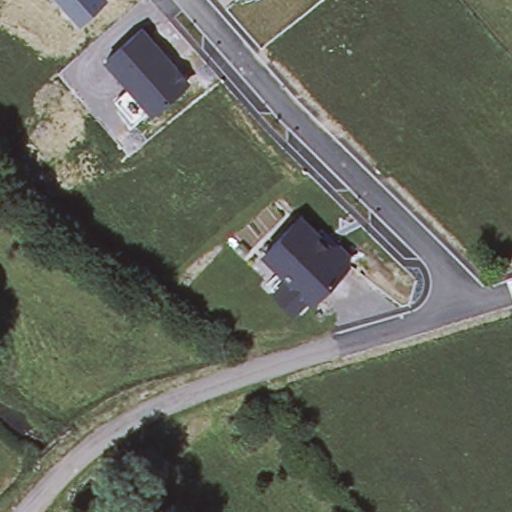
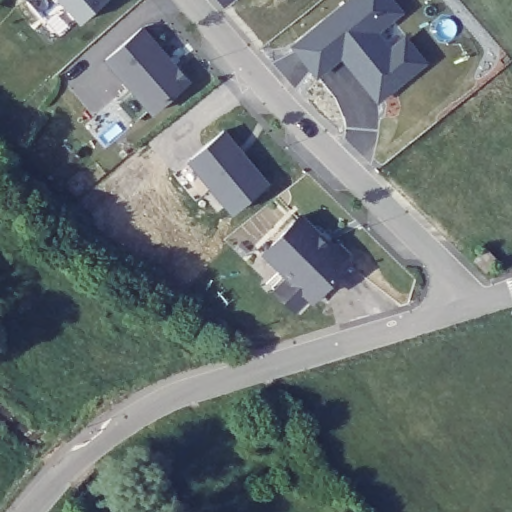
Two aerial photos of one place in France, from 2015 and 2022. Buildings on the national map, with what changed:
unchanged [(107,0),(82,21),(61,0),(107,0)]
new [(382,36),(392,51),(407,36),(430,66),(379,106),(343,62),(317,81),(294,51),(352,0),(393,0),(405,16),(382,36)]
unchanged [(117,98),(128,83),(105,57),(144,25),(192,81),(152,114),(147,108),(135,119),(117,98)]
new [(238,146),(235,149),(241,157),(244,154),(269,183),(234,213),(188,159),(223,129),(238,146)]
unchanged [(273,286),(287,272),(265,251),(300,215),(330,245),(340,244),(349,254),(349,263),(313,299),(309,295),(295,308),(273,286)]

